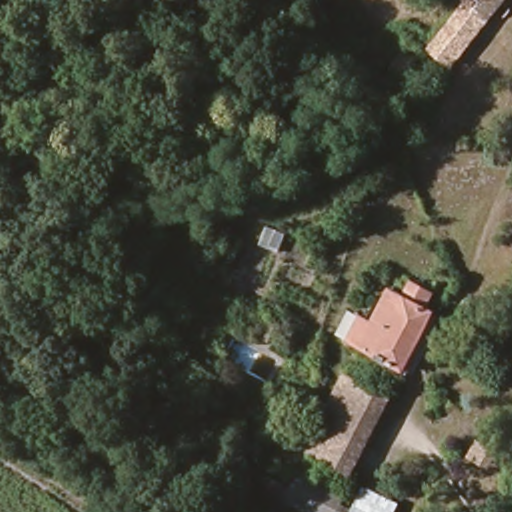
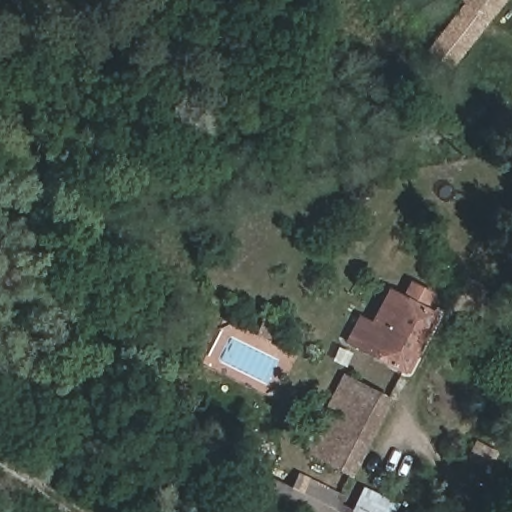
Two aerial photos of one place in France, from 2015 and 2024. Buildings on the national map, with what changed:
unchanged [(455,67),(433,49),(469,2),(467,1),(467,0),(509,0),(489,25),(468,51),(455,67)]
unchanged [(426,60),(407,82),(388,67),(407,44),(426,60)]
unchanged [(401,367),(344,337),(358,312),(371,319),(388,286),(402,292),(409,279),(430,290),(423,303),(431,307),(401,367)]
unchanged [(348,475),(308,453),(346,380),(386,401),(348,475)]
unchanged [(490,468),(472,458),(479,443),(498,453),(490,468)]
unchanged [(362,512),(294,512),(279,505),(289,485),(316,497),(324,482),(364,502),(360,511),(362,512)]

